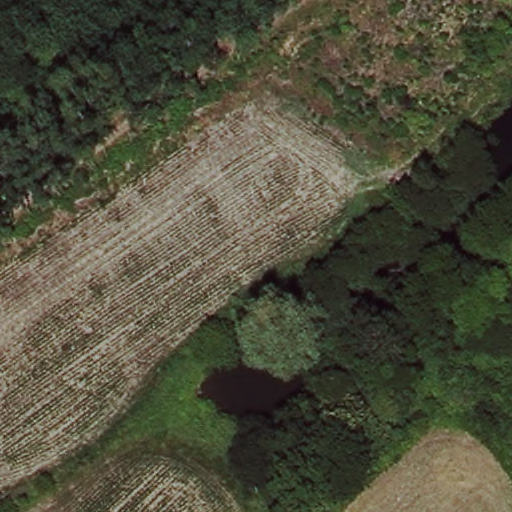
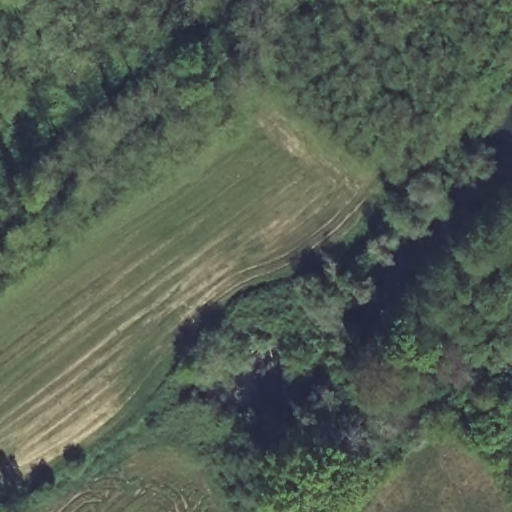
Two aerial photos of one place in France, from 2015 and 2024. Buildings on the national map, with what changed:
unchanged [(257,497),(267,494),(270,503),(262,507),(257,497)]

